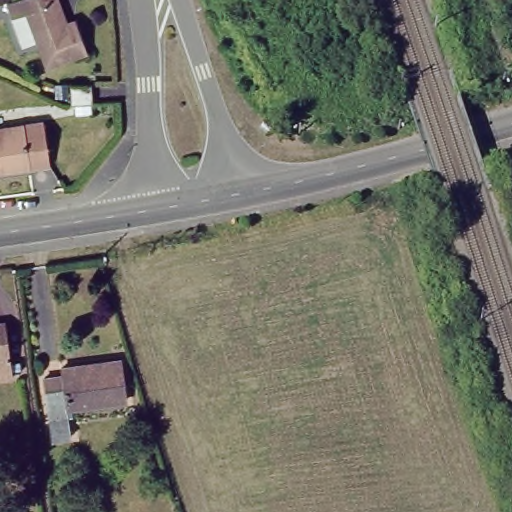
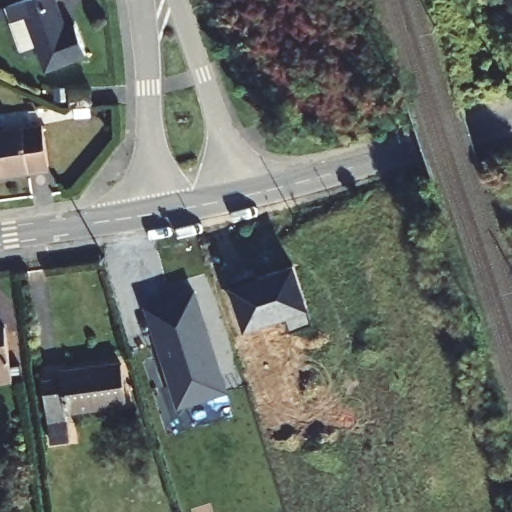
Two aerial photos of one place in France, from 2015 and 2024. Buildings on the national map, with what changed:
unchanged [(93,51),(55,65),(44,40),(31,45),(19,17),(13,2),(17,0),(62,0),(73,24),(82,21),(93,51)]
unchanged [(77,104),(77,82),(96,81),(98,104),(77,104)]
unchanged [(0,173),(0,128),(22,125),(44,122),(51,162),(29,165),(29,168),(0,173)]
new [(309,308),(312,321),(292,327),(290,313),(246,328),(231,282),(295,262),(309,308)]
new [(232,391),(179,407),(146,305),(198,287),(232,391)]
unchanged [(4,329),(11,381),(0,382),(0,329),(4,329)]
unchanged [(42,421),(38,382),(51,381),(51,372),(61,371),(114,364),(119,404),(55,411),(56,420),(42,421)]

